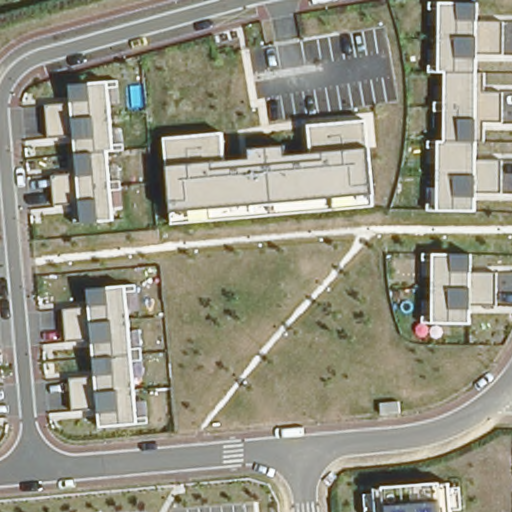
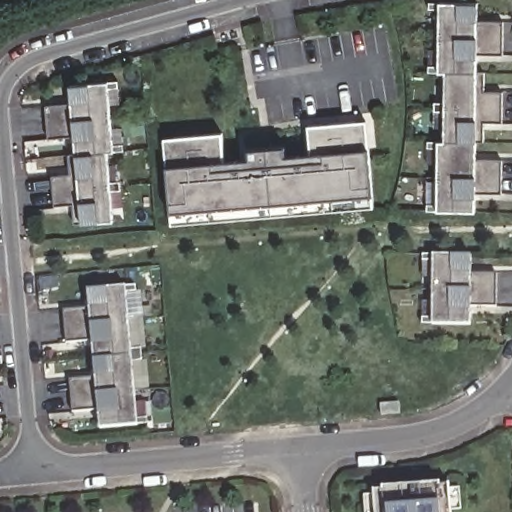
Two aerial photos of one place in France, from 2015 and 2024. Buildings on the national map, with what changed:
unchanged [(479,21),(504,21),(504,55),(479,55),(479,92),(505,92),(504,122),(478,123),(478,160),(503,160),(503,192),(478,193),(478,212),(438,211),(439,141),(447,142),(448,71),(439,71),(441,4),(479,4),(479,21)]
unchanged [(116,152),(109,153),(115,222),(83,225),(76,225),(74,205),(58,206),(54,177),(74,175),(72,156),(77,156),(75,135),(51,137),(48,107),(73,105),(71,86),(110,82),(116,152)]
unchanged [(166,139),(223,133),(225,162),(252,159),(252,150),(284,146),(285,156),(314,154),(312,125),(367,121),(369,150),(373,195),(374,205),(174,224),(174,214),(169,167),(166,139)]
unchanged [(473,274),(499,274),(499,306),(473,306),(473,325),(434,324),(434,255),(473,255),(473,274)]
unchanged [(139,425),(101,427),(99,409),(75,411),(73,378),(96,376),(93,340),(70,341),(68,310),(90,308),(88,290),(128,285),(139,425)]
unchanged [(376,496),(374,488),(451,483),(452,492),(461,491),(463,512),(367,512),(366,497),(376,496)]

